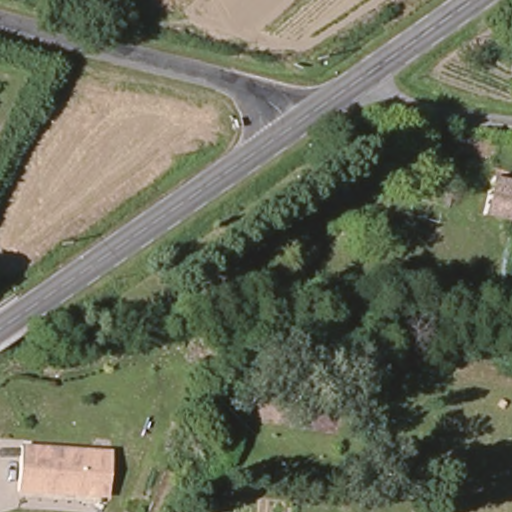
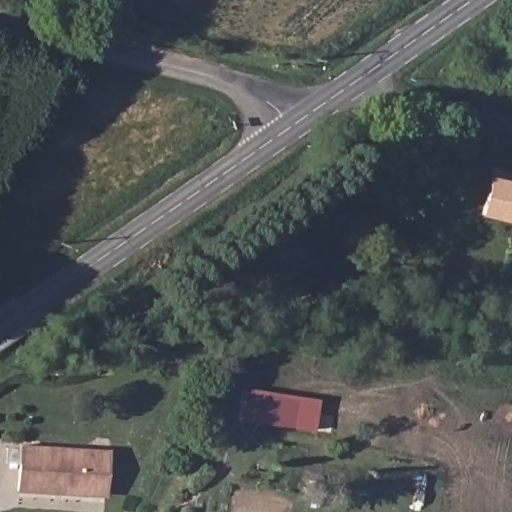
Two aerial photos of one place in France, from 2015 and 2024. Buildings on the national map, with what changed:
unchanged [(510,31),(512,27),(512,33),(510,31)]
unchanged [(512,185),(512,224),(482,219),(486,182),(512,185)]
new [(320,395),(317,429),(246,424),(249,391),(320,395)]
unchanged [(82,496),(17,491),(20,448),(107,454),(107,466),(105,498),(82,496)]

